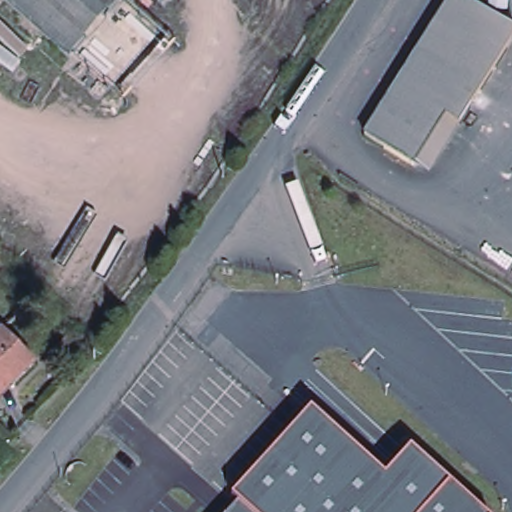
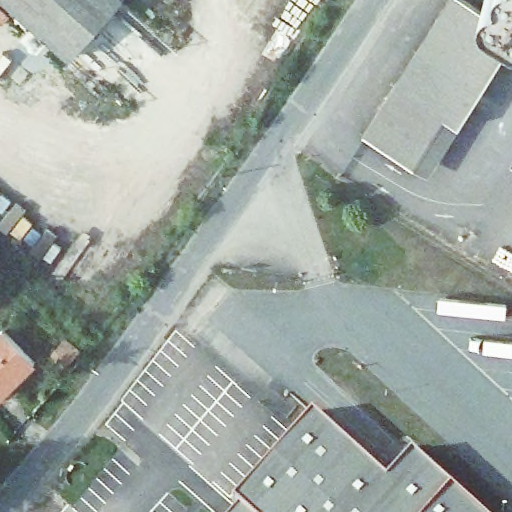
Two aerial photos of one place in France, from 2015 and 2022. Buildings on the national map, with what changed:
unchanged [(0,0),(127,0),(70,63),(0,0)]
unchanged [(425,172),(375,141),(463,0),(468,0),(512,27),(512,63),(469,131),(438,180),(425,172)]
unchanged [(508,17),(505,16),(501,14),(499,12),(497,8),(496,5),(496,1),(497,0),(512,0),(512,17),(508,17)]
unchanged [(36,363),(14,385),(0,398),(0,333),(3,331),(36,363)]
unchanged [(232,497),(313,407),(388,476),(413,448),(452,484),(427,512),(249,512),(238,502),(232,497)]
unchanged [(482,512),(427,512),(452,484),(482,512)]
unchanged [(249,512),(230,512),(238,502),(249,512)]

